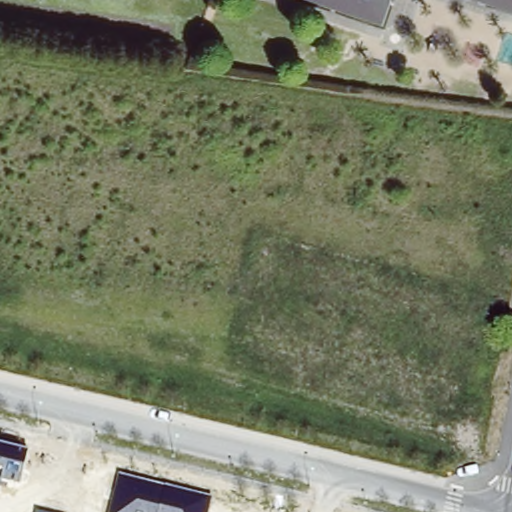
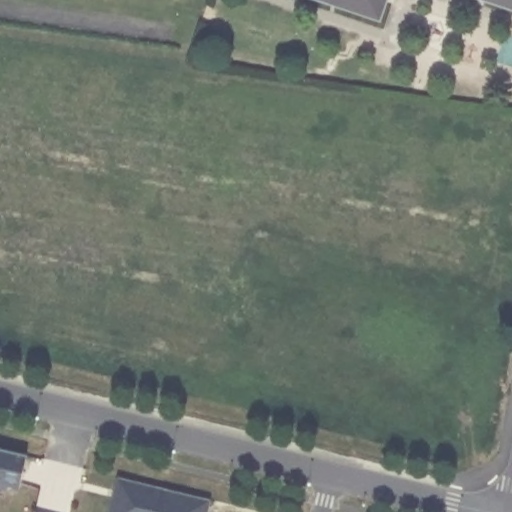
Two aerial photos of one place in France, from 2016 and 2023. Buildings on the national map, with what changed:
unchanged [(314,0),(392,0),(384,24),(314,0)]
unchanged [(479,0),(512,0),(512,11),(479,0)]
unchanged [(18,487),(8,483),(6,492),(0,490),(0,446),(27,453),(18,487)]
unchanged [(120,478),(212,498),(208,512),(111,512),(120,478)]

